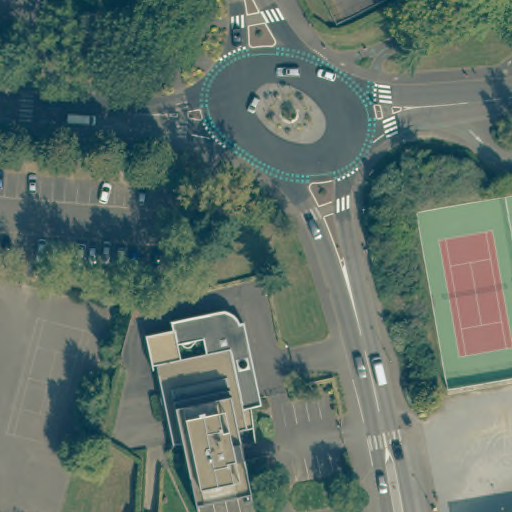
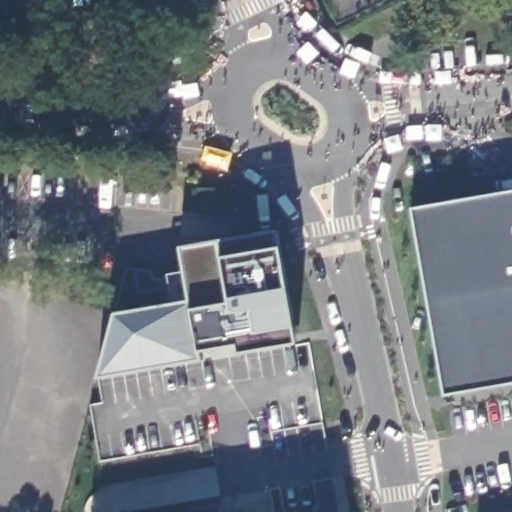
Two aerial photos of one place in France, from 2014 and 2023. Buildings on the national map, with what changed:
unchanged [(94,14),(93,34),(81,34),(81,14),(94,14)]
unchanged [(215,191),(214,208),(197,207),(198,190),(215,191)]
new [(416,214),(512,198),(512,377),(446,389),(416,214)]
new [(116,314),(170,304),(168,275),(184,272),(180,247),(275,230),(279,249),(293,329),(297,344),(238,355),(235,346),(198,353),(202,360),(99,378),(116,314)]
demolished [(169,331),(166,322),(212,312),(218,311),(224,312),(229,314),(233,319),(235,324),(239,324),(241,351),(227,354),(238,409),(246,408),(248,429),(233,432),(245,495),(191,507),(177,445),(170,446),(154,367),(148,368),(142,337),(169,331)]

